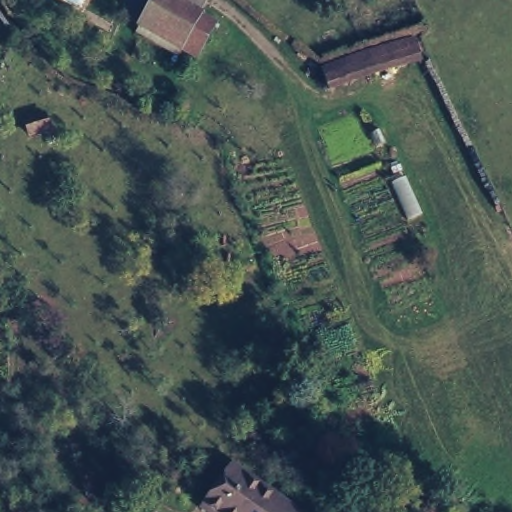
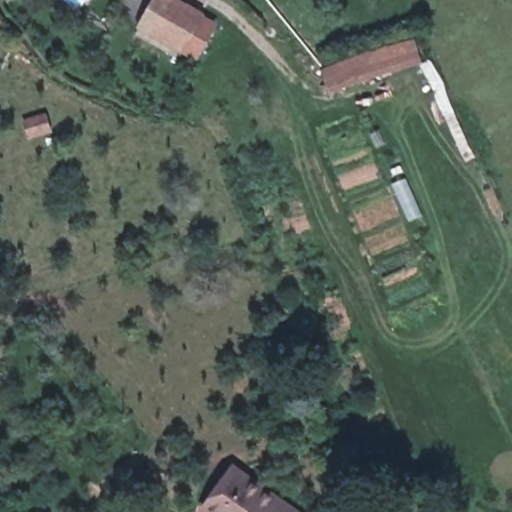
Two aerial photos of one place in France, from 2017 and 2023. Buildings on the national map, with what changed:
unchanged [(206,20),(189,51),(134,20),(145,0),(175,0),(194,11),(193,12),(206,20)]
unchanged [(320,69),(415,37),(424,65),(330,96),(320,69)]
unchanged [(28,130),(24,116),(43,109),(48,123),(28,130)]
unchanged [(240,466),(306,512),(205,512),(240,466)]

